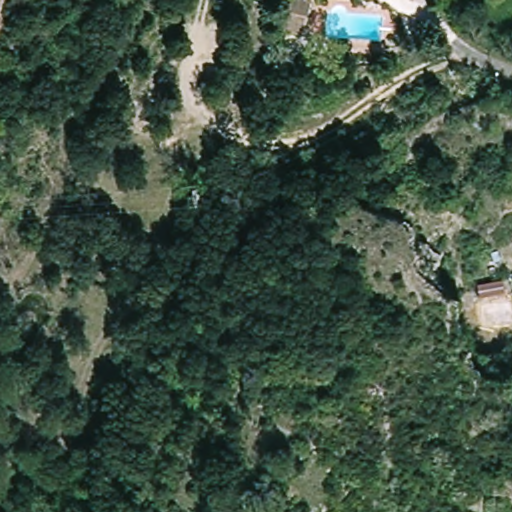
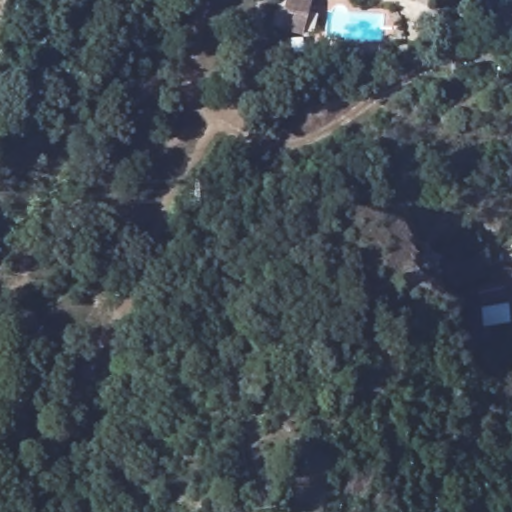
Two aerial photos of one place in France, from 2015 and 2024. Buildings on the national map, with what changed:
unchanged [(284,32),(291,0),(312,5),(305,36),(284,32)]

